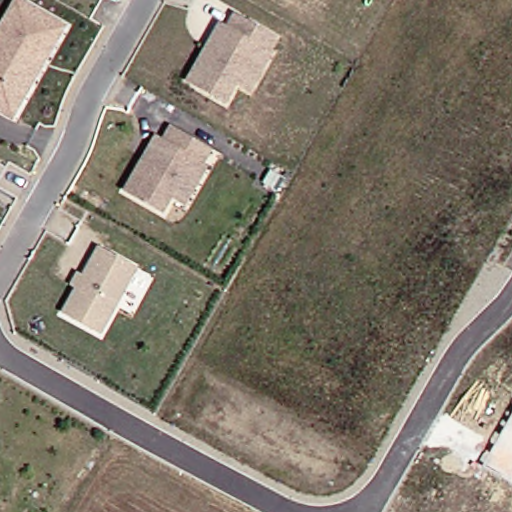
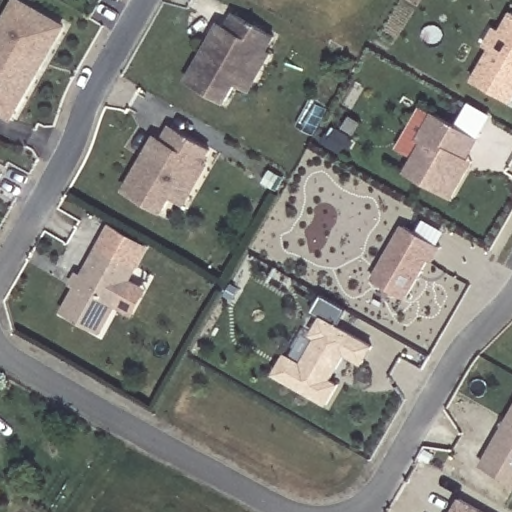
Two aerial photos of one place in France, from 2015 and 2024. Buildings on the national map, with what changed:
unchanged [(67,30),(26,102),(15,121),(0,113),(0,38),(20,4),(67,30)]
unchanged [(249,89),(236,81),(225,100),(187,79),(207,44),(220,23),(227,26),(235,12),(274,35),(266,49),(271,51),(249,89)]
new [(484,46),(495,27),(501,30),(511,13),(512,13),(512,103),(472,80),(489,51),(484,46)]
new [(467,170),(451,200),(405,174),(422,145),(417,142),(432,114),(477,140),(466,159),(471,162),(467,170)]
unchanged [(182,202),(170,195),(160,210),(122,188),(141,156),(150,143),(156,147),(161,140),(169,126),(209,149),(200,163),(205,165),(182,202)]
new [(332,126),(351,139),(340,158),(320,146),(332,126)]
new [(400,226),(437,247),(428,262),(425,259),(403,299),(370,280),(400,226)]
unchanged [(66,311),(104,245),(141,266),(103,332),(66,311)]
new [(284,359),(300,368),(315,341),(310,338),(319,322),(308,316),(318,297),(345,311),(335,329),(370,348),(360,366),(342,356),(327,382),(336,387),(325,407),(273,378),(284,359)]
unchanged [(481,466),(512,411),(512,484),(481,466)]
new [(456,502),(475,512),(450,512),(456,502)]

